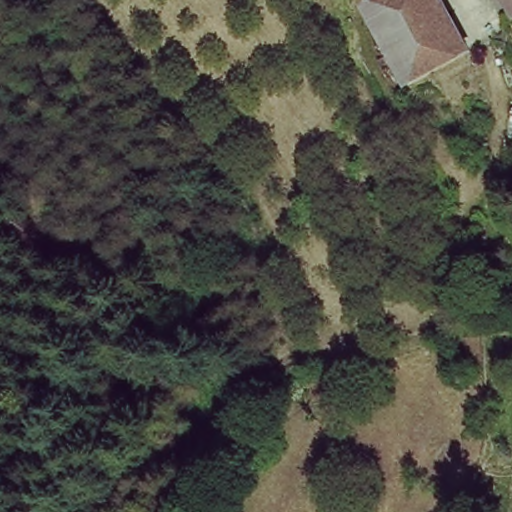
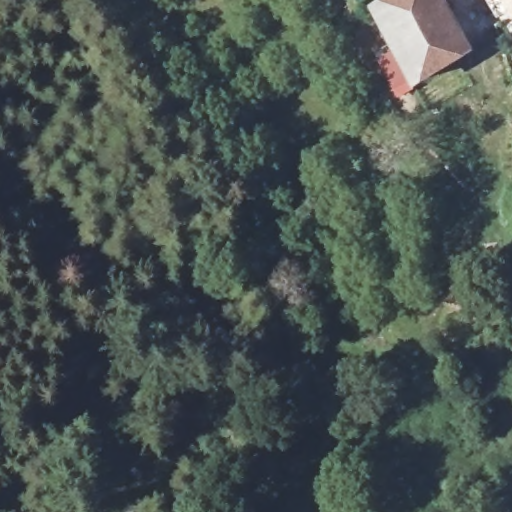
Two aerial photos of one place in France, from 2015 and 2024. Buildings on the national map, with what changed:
unchanged [(374,4),(382,0),(444,0),(472,54),(414,83),(374,4)]
unchanged [(499,0),(512,0),(512,17),(509,19),(499,0)]

